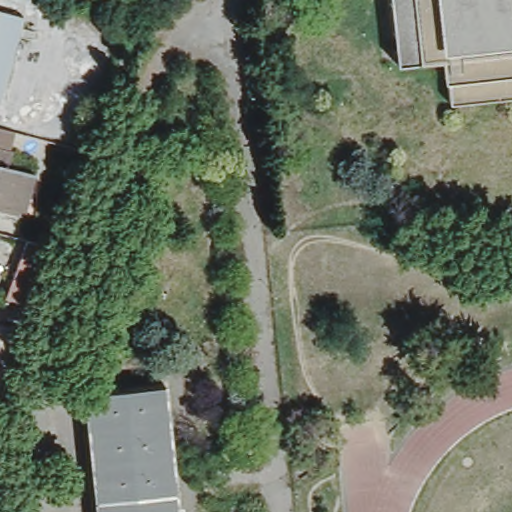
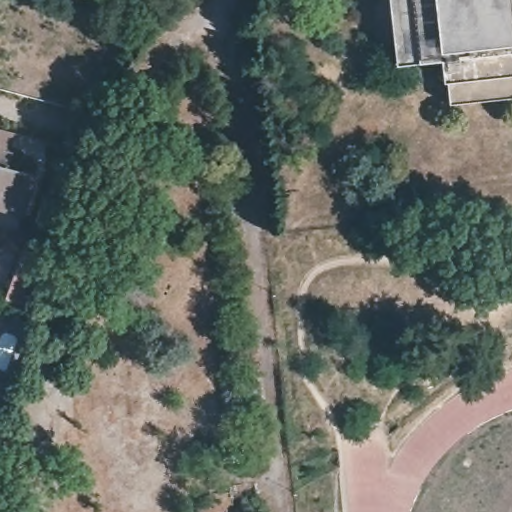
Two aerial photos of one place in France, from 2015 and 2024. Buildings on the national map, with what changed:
unchanged [(449,79),(447,63),(423,62),(395,63),(389,0),(512,0),(512,95),(450,101),(449,79)]
demolished [(26,16),(26,17),(27,18),(4,102),(0,101),(0,9),(26,16)]
unchanged [(15,151),(11,166),(37,174),(26,214),(0,208),(0,148),(15,151)]
unchanged [(55,247),(56,247),(56,248),(34,305),(5,297),(26,239),(50,245),(55,247)]
new [(0,405),(0,382),(2,383),(1,405),(0,405)]
demolished [(178,512),(99,512),(86,392),(165,383),(178,512)]

